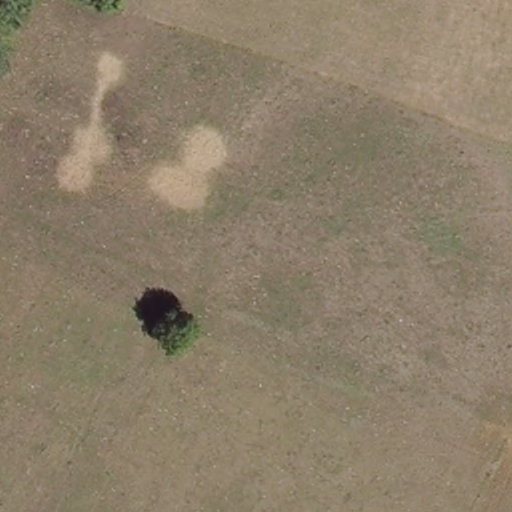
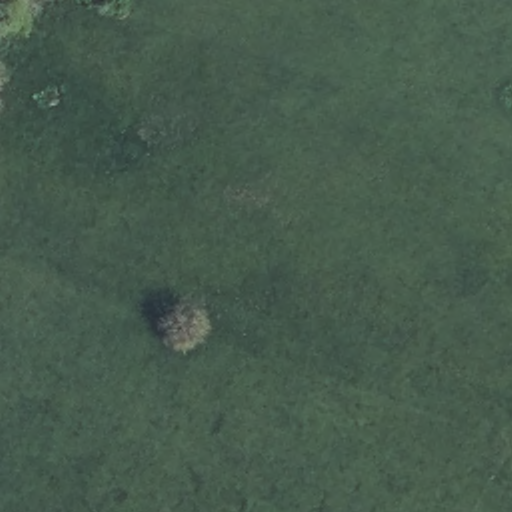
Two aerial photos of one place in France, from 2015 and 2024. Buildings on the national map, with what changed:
[]

